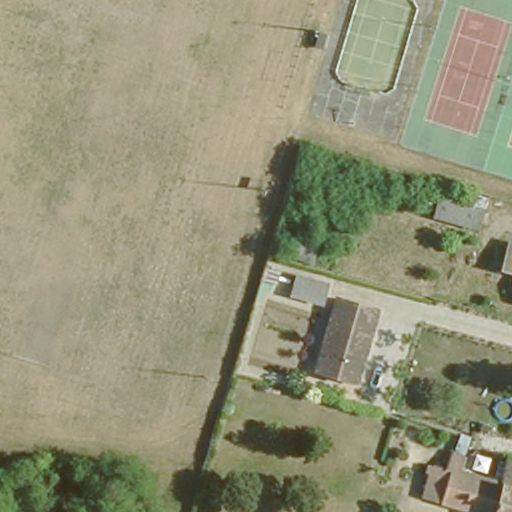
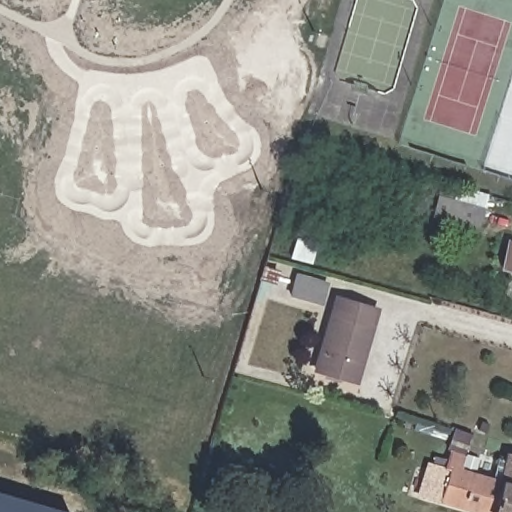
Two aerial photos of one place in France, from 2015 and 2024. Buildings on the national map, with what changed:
unchanged [(432,215),(439,189),(487,204),(480,230),(432,215)]
unchanged [(503,252),(507,238),(512,229),(512,257),(503,252)]
unchanged [(325,290),(317,313),(290,306),(296,281),(325,290)]
unchanged [(377,304),(357,375),(319,364),(339,292),(377,304)]
unchanged [(470,391),(466,405),(460,404),(463,390),(470,391)]
unchanged [(471,447),(475,435),(481,437),(485,424),(512,431),(512,512),(503,512),(458,501),(468,460),(471,447)]
unchanged [(418,489),(432,436),(443,440),(453,442),(451,455),(468,460),(458,501),(418,489)]
new [(0,512),(0,492),(68,512),(0,512)]

